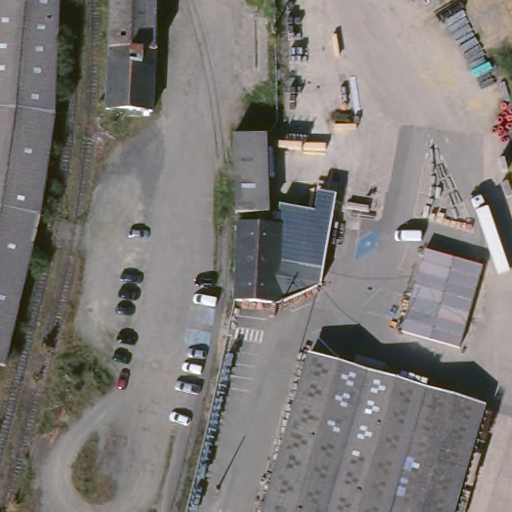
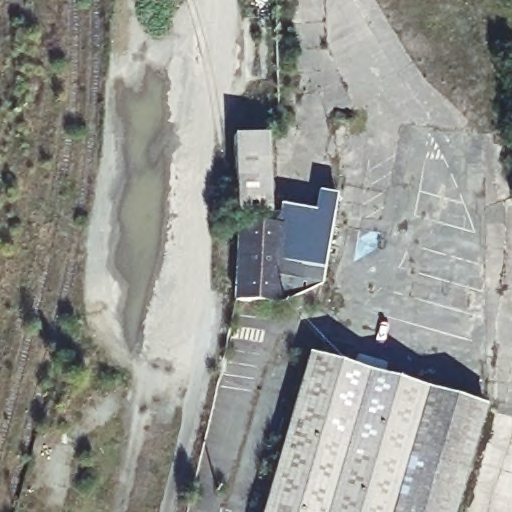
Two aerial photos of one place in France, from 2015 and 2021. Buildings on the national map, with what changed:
demolished [(54,84),(52,117),(50,137),(45,170),(40,208),(37,227),(27,267),(16,310),(1,368),(0,368),(0,0),(57,0),(55,32),(54,84)]
demolished [(154,74),(151,117),(106,114),(108,55),(108,0),(156,0),(155,39),(154,74)]
unchanged [(249,218),(233,218),(233,141),(266,140),(267,217),(249,218)]
unchanged [(312,217),(316,197),(336,201),(320,280),(318,290),(285,305),(300,215),(312,217)]
unchanged [(255,227),(249,218),(267,217),(276,219),(277,211),(300,215),(285,305),(275,305),(279,227),(255,227)]
unchanged [(275,305),(275,307),(232,305),(235,227),(255,227),(279,227),(275,305)]
unchanged [(351,360),(379,367),(376,377),(446,397),(478,406),(457,479),(448,512),(262,512),(267,492),(286,426),(305,357),(349,370),(351,360)]

